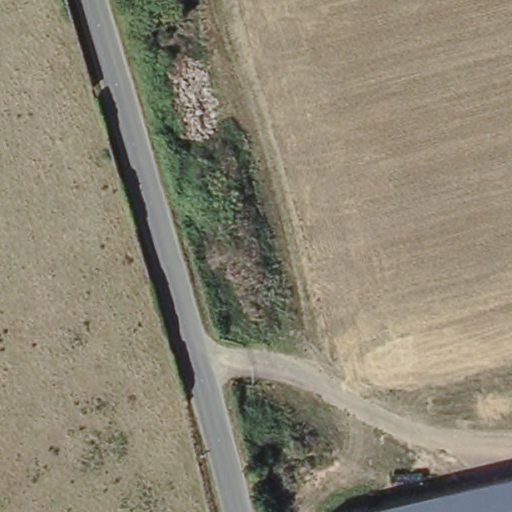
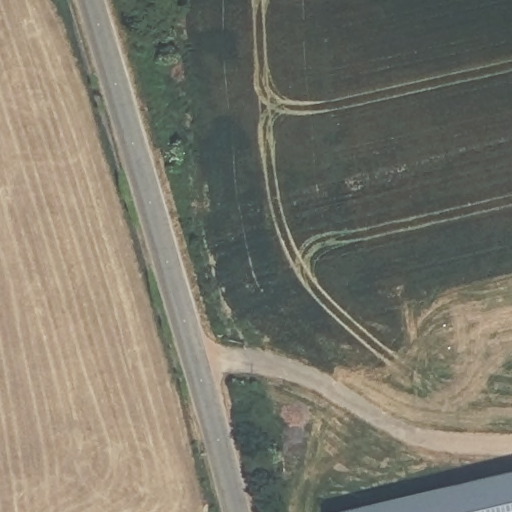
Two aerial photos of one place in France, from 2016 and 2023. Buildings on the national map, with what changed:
unchanged [(512,475),(512,512),(352,512),(512,475)]

